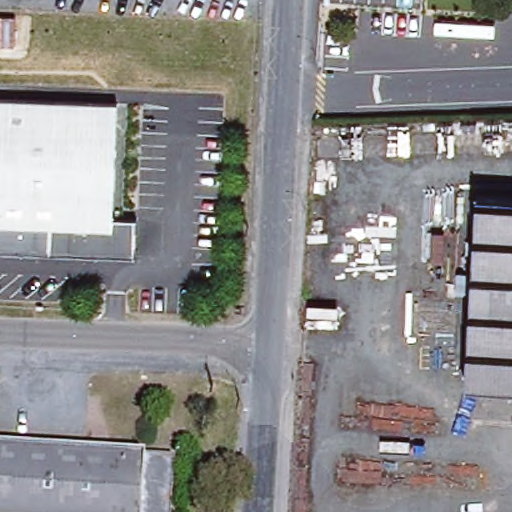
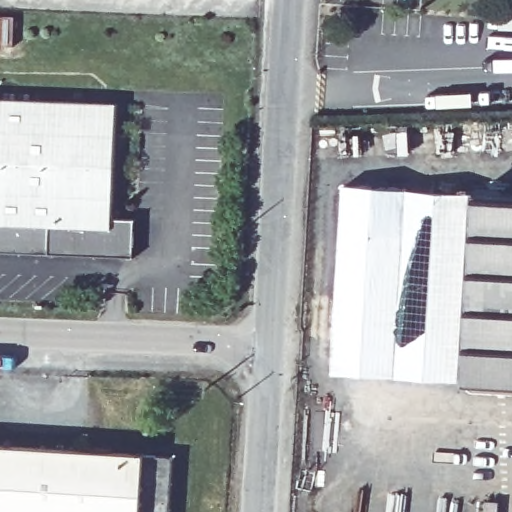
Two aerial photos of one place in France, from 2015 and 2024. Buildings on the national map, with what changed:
unchanged [(124,258),(50,255),(0,255),(0,103),(112,107),(109,222),(126,223),(135,223),(135,259),(124,258)]
new [(332,375),(343,186),(469,194),(458,380),(332,375)]
unchanged [(472,220),(512,222),(512,369),(465,366),(472,220)]
unchanged [(173,512),(0,512),(0,451),(173,456),(173,512)]

